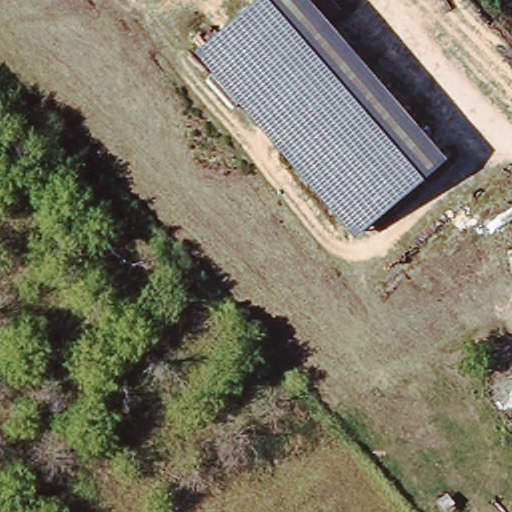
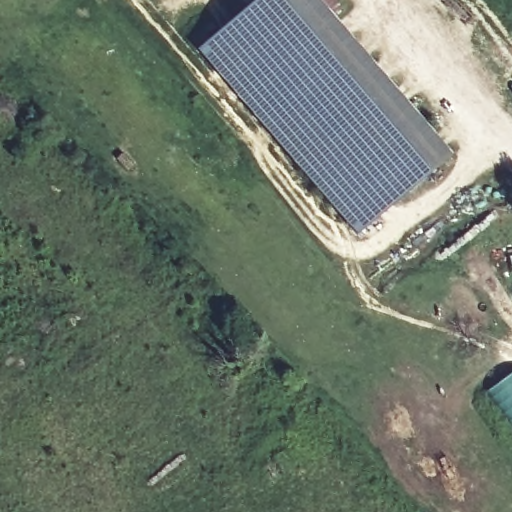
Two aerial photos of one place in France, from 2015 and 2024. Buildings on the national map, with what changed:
unchanged [(356,234),(197,48),(254,0),(319,0),(451,152),(356,234)]
new [(491,390),(512,372),(512,417),(491,390)]

